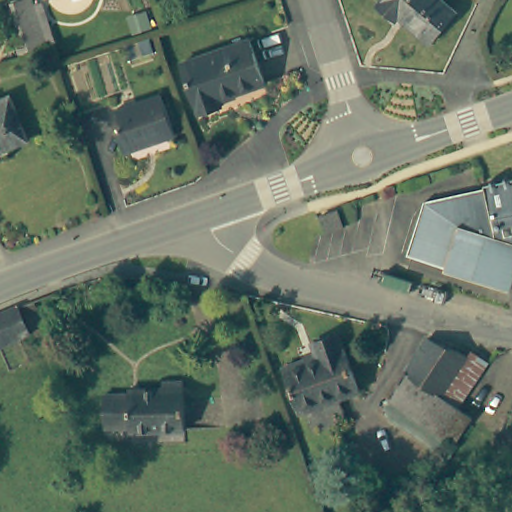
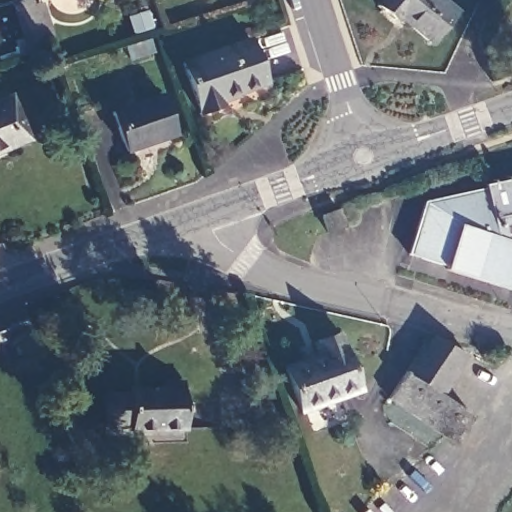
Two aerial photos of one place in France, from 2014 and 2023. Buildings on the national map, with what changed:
unchanged [(19,53),(17,46),(27,43),(13,0),(37,0),(51,42),(19,53)]
unchanged [(456,14),(428,42),(401,18),(396,24),(377,3),(380,0),(442,0),(456,14)]
unchanged [(260,83),(217,98),(219,106),(196,114),(179,62),(247,40),(260,83)]
unchanged [(173,132),(123,149),(109,109),(160,92),(173,132)]
unchanged [(24,139),(2,146),(4,152),(0,154),(0,96),(6,94),(24,139)]
unchanged [(444,272),(446,266),(408,255),(422,201),(484,187),(483,185),(512,178),(512,275),(507,290),(444,272)]
unchanged [(321,214),(319,207),(336,202),(338,208),(342,220),(325,225),(321,214)]
unchanged [(0,348),(0,315),(17,307),(27,336),(19,340),(0,348)]
unchanged [(318,352),(313,339),(337,330),(358,388),(337,396),(345,420),(307,434),(282,362),(318,352)]
unchanged [(409,367),(432,337),(440,338),(467,359),(473,351),(493,366),(458,407),(409,367)]
unchanged [(445,433),(389,393),(409,367),(458,407),(463,411),(472,418),(455,440),(445,433)]
unchanged [(129,391),(129,385),(165,384),(166,377),(182,378),(182,427),(127,428),(127,422),(104,422),(104,391),(129,391)]

